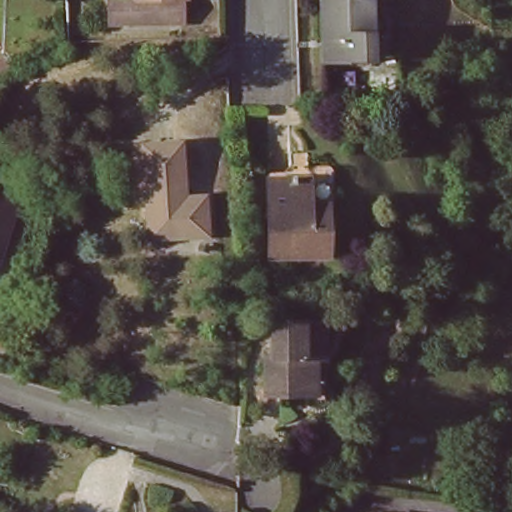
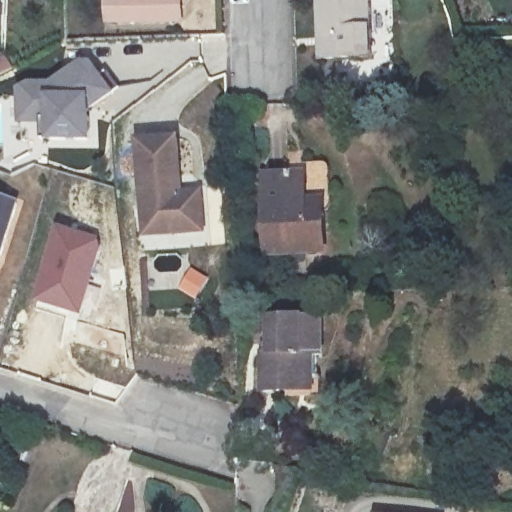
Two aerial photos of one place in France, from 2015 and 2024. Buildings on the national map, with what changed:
unchanged [(178,12),(177,25),(142,24),(109,25),(110,6),(110,0),(186,0),(185,4),(178,12)]
unchanged [(320,59),(321,0),(371,0),(371,59),(320,59)]
unchanged [(0,65),(0,52),(6,62),(0,65)]
new [(21,93),(30,86),(52,86),(82,63),(91,64),(98,74),(105,70),(118,88),(90,109),(89,139),(42,140),(43,123),(23,123),(21,93)]
unchanged [(142,184),(141,143),(180,143),(181,168),(181,180),(175,185),(174,198),(200,198),(202,237),(173,238),(142,238),(143,224),(142,184)]
unchanged [(317,180),(317,259),(263,259),(265,180),(317,180)]
unchanged [(0,239),(0,201),(10,204),(0,239)]
new [(103,239),(80,314),(31,299),(54,224),(103,239)]
unchanged [(281,396),(258,394),(260,352),(267,352),(268,319),(322,320),(320,357),(312,357),(311,383),(312,398),(281,396)]

